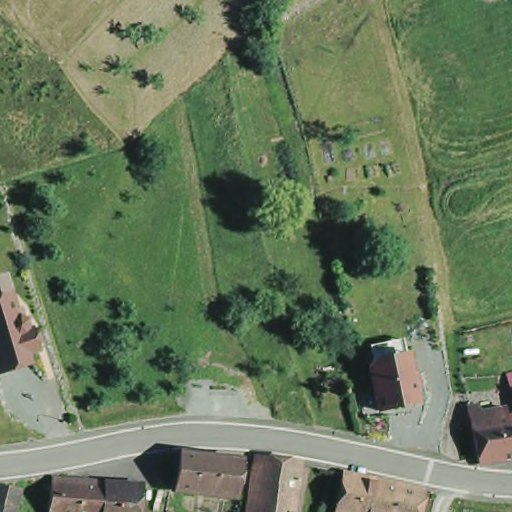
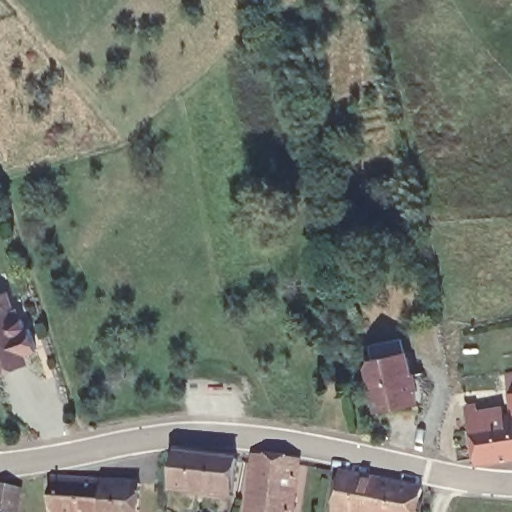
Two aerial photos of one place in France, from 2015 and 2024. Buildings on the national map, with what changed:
unchanged [(16,320),(24,318),(25,325),(29,324),(39,348),(27,353),(30,362),(0,371),(0,293),(8,291),(16,320)]
unchanged [(412,373),(417,373),(419,388),(415,388),(418,402),(373,410),(365,360),(374,357),(370,342),(402,336),(405,350),(410,350),(412,373)]
unchanged [(511,379),(512,379),(512,384),(511,379)]
unchanged [(477,410),(502,407),(505,417),(512,415),(512,458),(497,461),(477,463),(475,457),(467,407),(476,405),(477,410)]
unchanged [(174,490),(177,454),(178,454),(202,456),(234,459),(235,460),(231,497),(193,492),(192,503),(181,502),(182,496),(175,495),(177,490),(174,490)]
unchanged [(257,457),(259,457),(302,461),(302,466),(296,512),(251,512),(257,457)]
unchanged [(335,468),(383,477),(404,481),(416,483),(411,512),(346,512),(327,509),(335,468)]
unchanged [(101,512),(50,512),(51,479),(102,481),(101,512)]
unchanged [(137,512),(101,512),(102,481),(139,483),(137,512)]
unchanged [(0,508),(0,484),(22,488),(17,512),(0,508)]

